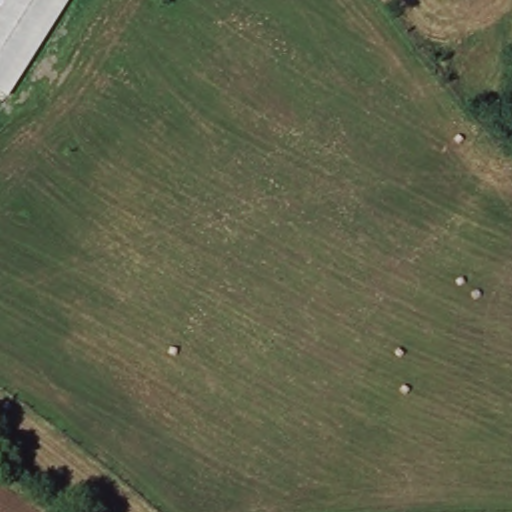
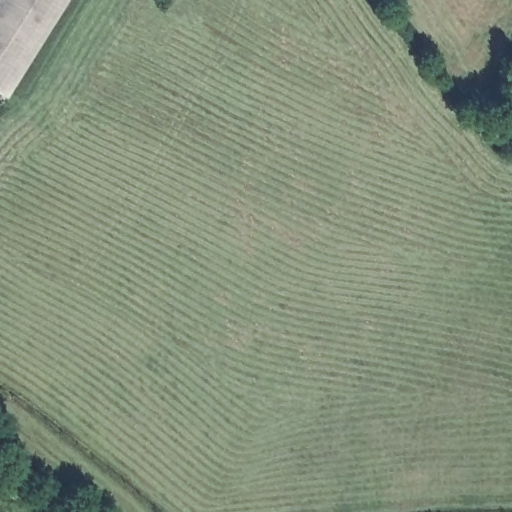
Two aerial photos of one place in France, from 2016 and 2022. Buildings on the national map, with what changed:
unchanged [(7,98),(0,93),(0,0),(70,0),(7,98)]

